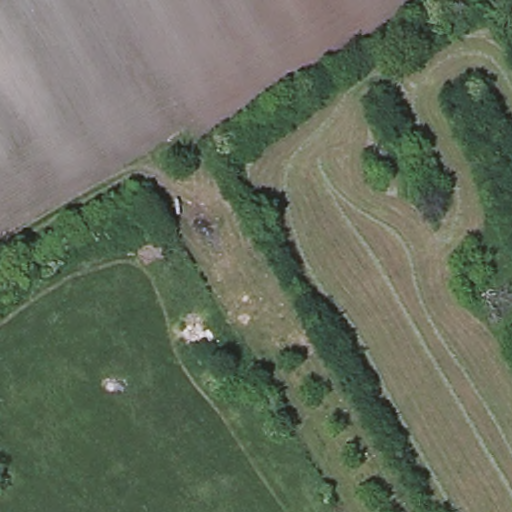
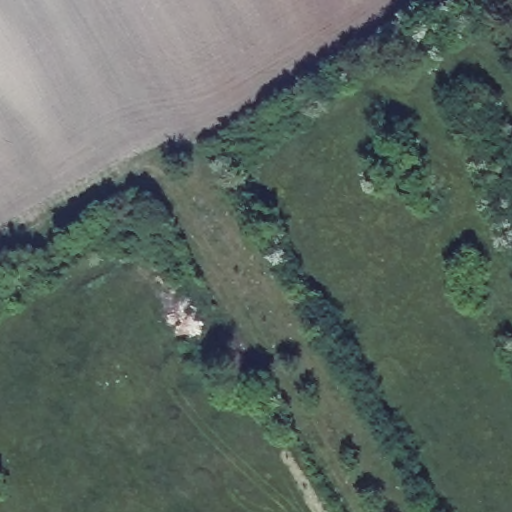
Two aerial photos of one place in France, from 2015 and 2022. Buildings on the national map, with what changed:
[]

